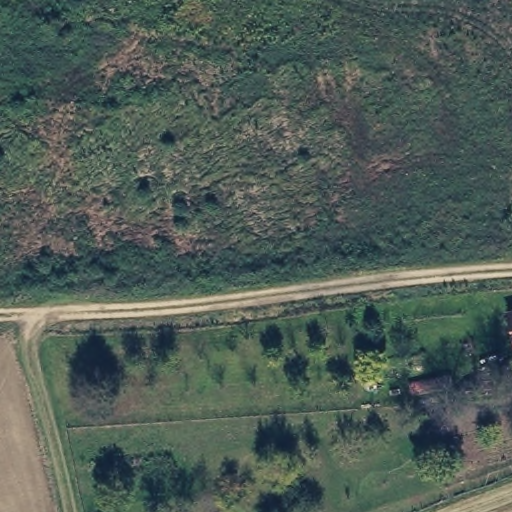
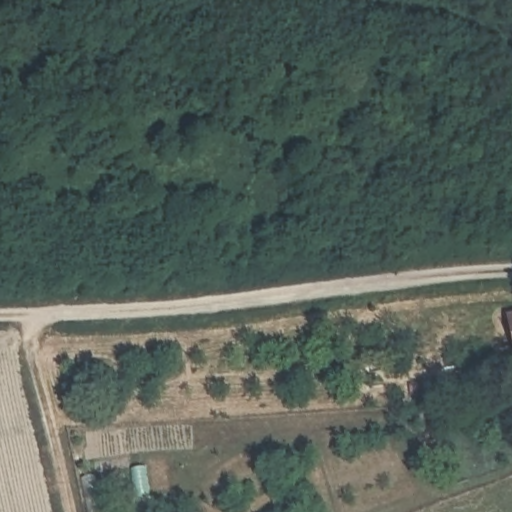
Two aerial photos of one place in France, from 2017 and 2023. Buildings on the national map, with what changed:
unchanged [(512,329),(510,324),(512,323),(512,329)]

